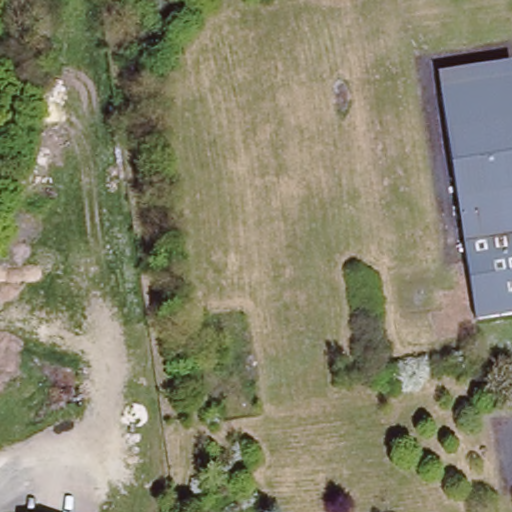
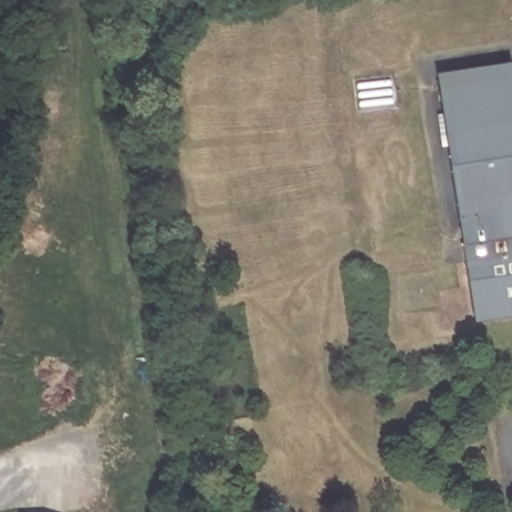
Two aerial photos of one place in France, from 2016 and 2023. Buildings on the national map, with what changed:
unchanged [(442,87),(512,76),(512,312),(480,317),(442,87)]

